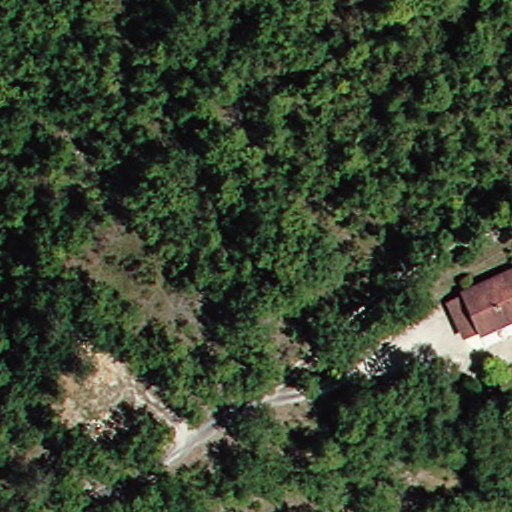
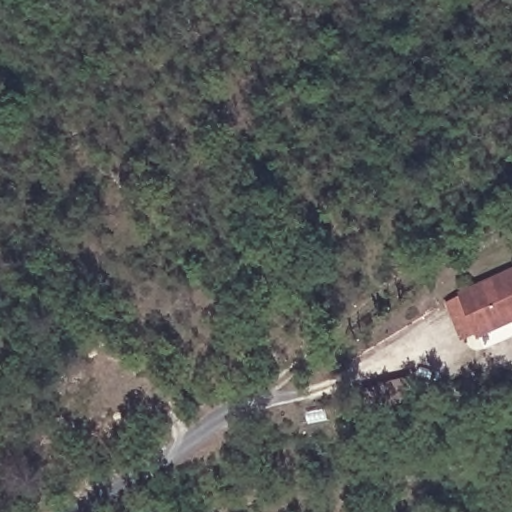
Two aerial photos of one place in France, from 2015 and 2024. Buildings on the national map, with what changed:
unchanged [(480,333),(465,288),(512,270),(512,321),(480,333)]

